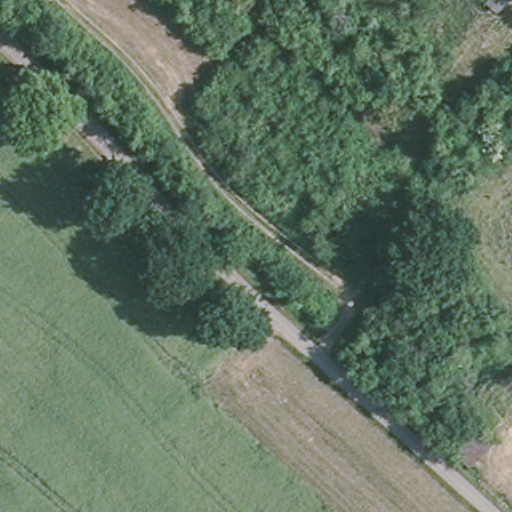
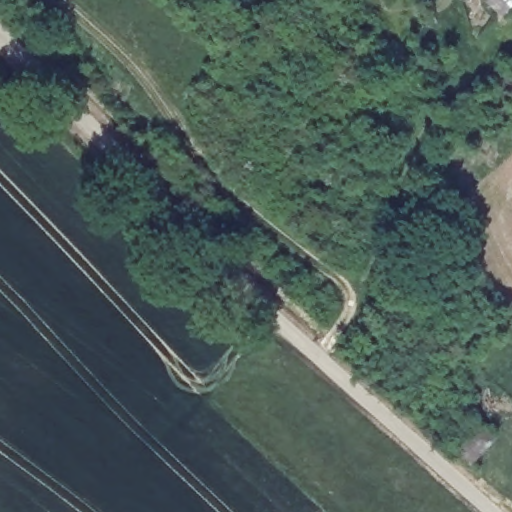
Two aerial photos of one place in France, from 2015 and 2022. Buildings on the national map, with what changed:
[]

